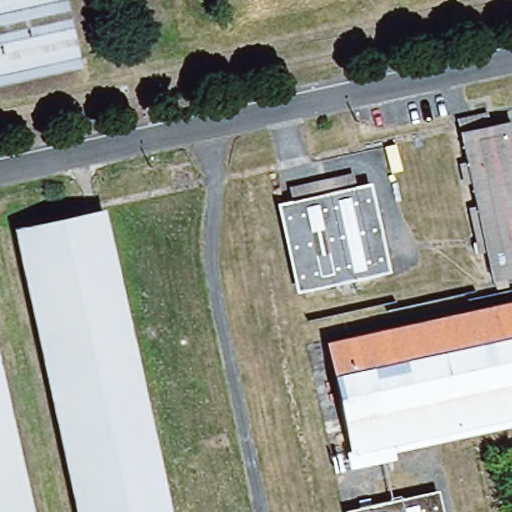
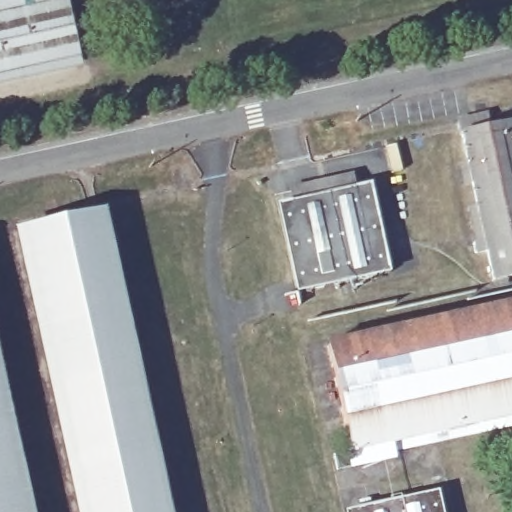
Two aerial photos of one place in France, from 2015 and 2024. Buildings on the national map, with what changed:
unchanged [(0,88),(0,0),(69,0),(84,69),(0,88)]
unchanged [(489,252),(478,255),(467,208),(478,205),(473,182),(462,188),(458,165),(468,162),(462,133),(512,122),(512,276),(495,279),(489,252)]
unchanged [(299,292),(281,205),(290,202),(291,188),(355,176),(355,186),(371,185),(390,272),(299,292)]
unchanged [(107,211),(174,512),(77,512),(14,230),(107,211)]
unchanged [(396,460),(336,473),(332,456),(320,460),(305,390),(332,378),(328,342),(512,302),(512,420),(396,446),(396,460)]
unchanged [(34,512),(0,512),(0,359),(34,512)]
unchanged [(444,512),(347,512),(439,491),(444,512)]

